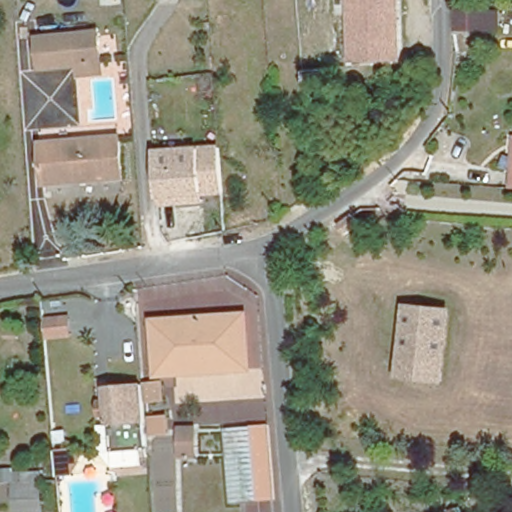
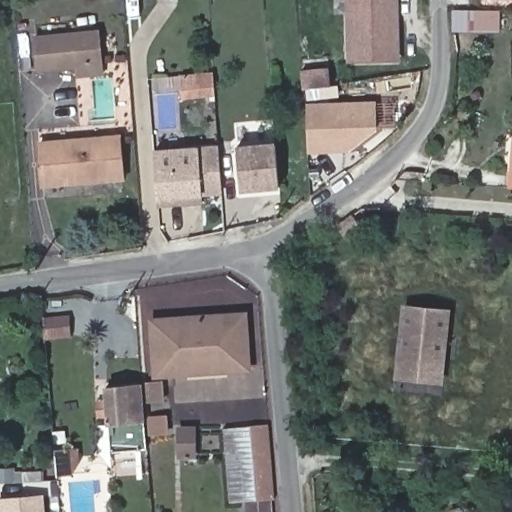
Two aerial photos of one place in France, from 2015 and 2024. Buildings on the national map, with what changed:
unchanged [(350,66),(347,0),(400,0),(400,64),(350,66)]
unchanged [(467,30),(468,13),(499,13),(499,30),(467,30)]
unchanged [(79,76),(78,66),(40,70),(37,39),(98,33),(101,64),(102,74),(79,76)]
new [(334,88),(307,91),(305,74),(332,71),(334,88)]
new [(377,101),(379,128),(358,146),(345,147),(345,151),(312,153),(308,106),(377,101)]
unchanged [(119,138),(123,178),(44,185),(40,144),(119,138)]
new [(242,192),(237,146),(275,143),(280,189),(242,192)]
unchanged [(220,146),(224,195),(201,196),(202,204),(158,209),(153,151),(197,148),(220,146)]
unchanged [(445,314),(439,383),(400,380),(406,311),(445,314)]
unchanged [(245,314),(249,368),(157,376),(152,321),(245,314)]
unchanged [(45,320),(69,317),(71,340),(47,344),(45,320)]
unchanged [(163,382),(164,401),(148,402),(146,384),(163,382)]
unchanged [(147,448),(112,451),(111,441),(111,439),(109,418),(98,419),(97,402),(108,401),(107,388),(142,385),(147,436),(147,446),(147,448)]
unchanged [(168,418),(169,433),(151,434),(150,419),(168,418)]
unchanged [(230,504),(224,429),(269,425),(275,500),(230,504)]
unchanged [(195,429),(195,456),(181,456),(180,430),(195,429)]
new [(43,496),(45,512),(2,512),(0,500),(43,496)]

